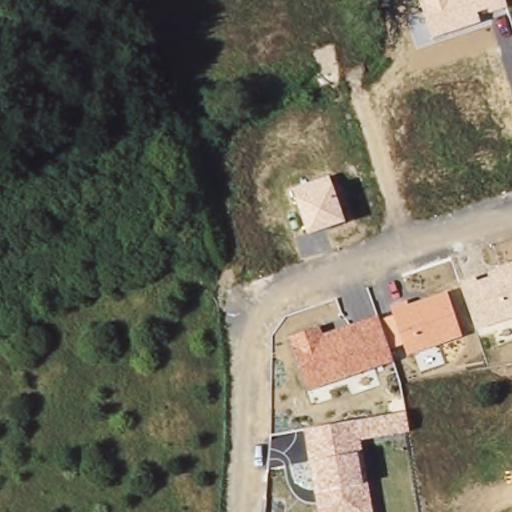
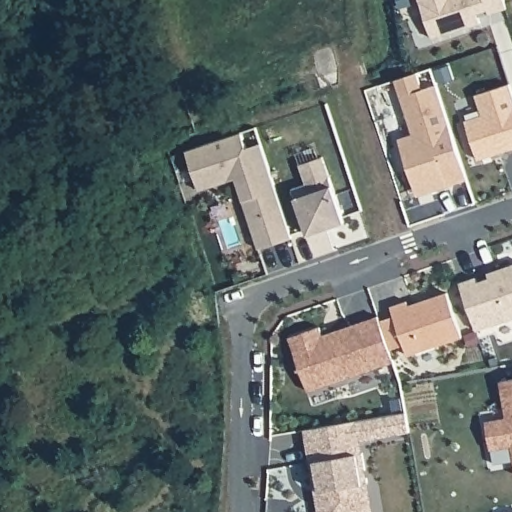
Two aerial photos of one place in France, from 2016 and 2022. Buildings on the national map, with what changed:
unchanged [(487,16),(485,11),(478,14),(480,22),(433,38),(420,0),(506,0),(509,9),(487,16)]
new [(417,185),(403,138),(418,134),(401,79),(422,73),(427,89),(441,85),(470,178),(434,191),(421,196),(417,185)]
new [(471,123),(488,118),(482,96),(512,87),(512,153),(502,156),(482,161),(471,123)]
new [(257,248),(248,219),(242,200),(235,177),(198,189),(186,149),(241,131),(246,146),(261,141),(276,190),(282,209),(291,238),(257,248)]
unchanged [(329,175),(345,221),(308,235),(291,189),(329,175)]
unchanged [(459,282),(476,276),(479,280),(488,277),(487,272),(512,263),(512,317),(478,330),(459,282)]
unchanged [(307,391),(290,336),(320,326),(323,334),(380,316),(381,320),(392,316),(390,306),(406,300),(409,305),(446,293),(462,337),(407,358),(403,346),(390,350),(393,361),(307,391)]
new [(512,381),(512,478),(508,449),(486,452),(482,424),(503,420),(497,384),(512,381)]
unchanged [(410,433),(362,441),(374,512),(319,512),(305,429),(407,411),(410,433)]

